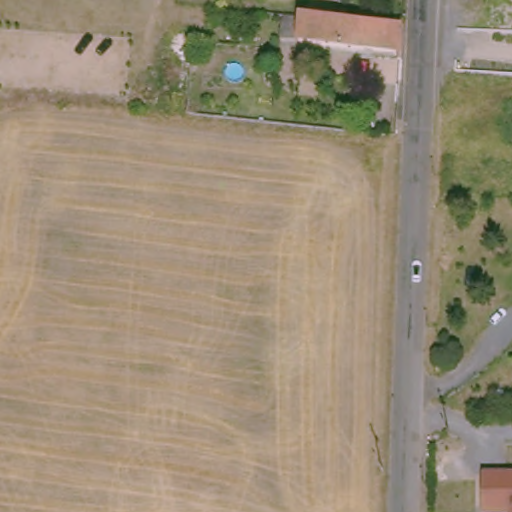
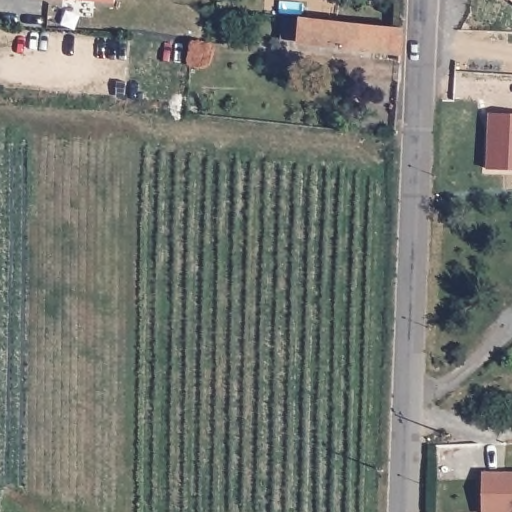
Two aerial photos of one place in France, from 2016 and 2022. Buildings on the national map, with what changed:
new [(117,2),(91,0),(117,0),(117,2)]
unchanged [(401,30),(400,57),(272,41),(274,15),(309,20),(401,30)]
new [(490,114),(512,114),(512,171),(488,170),(490,114)]
unchanged [(512,474),(512,512),(489,512),(487,475),(512,474)]

